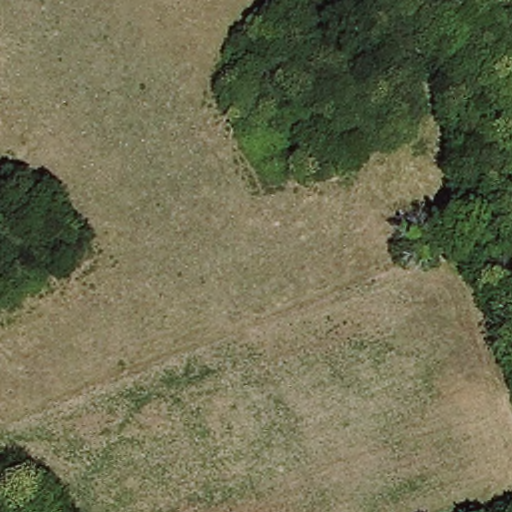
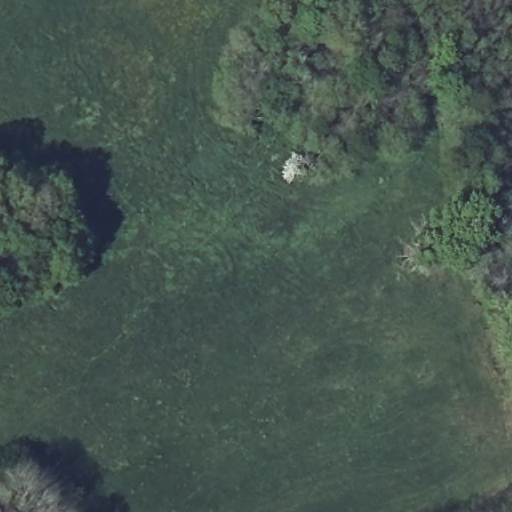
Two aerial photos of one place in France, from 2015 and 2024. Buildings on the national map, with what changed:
[]

